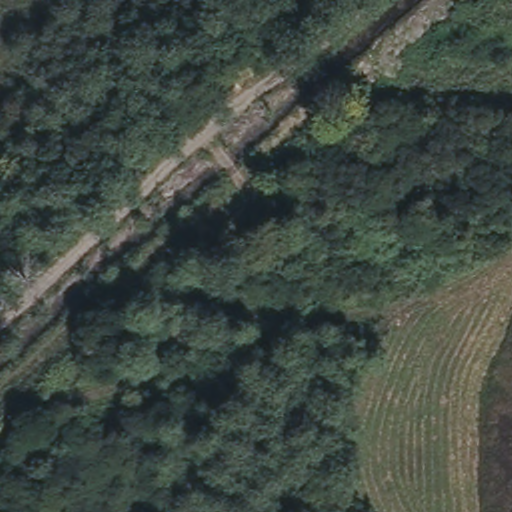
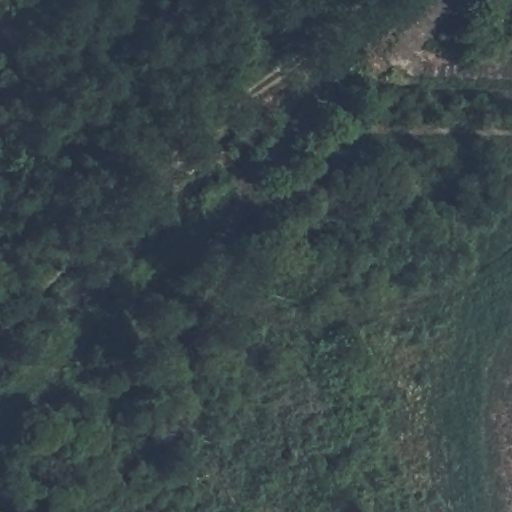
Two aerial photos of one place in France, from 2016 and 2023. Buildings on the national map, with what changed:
[]

